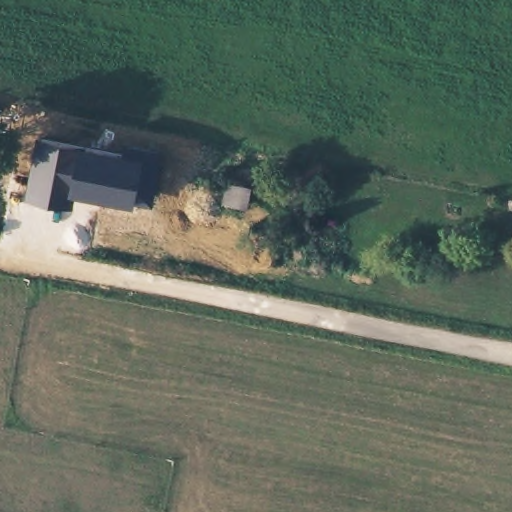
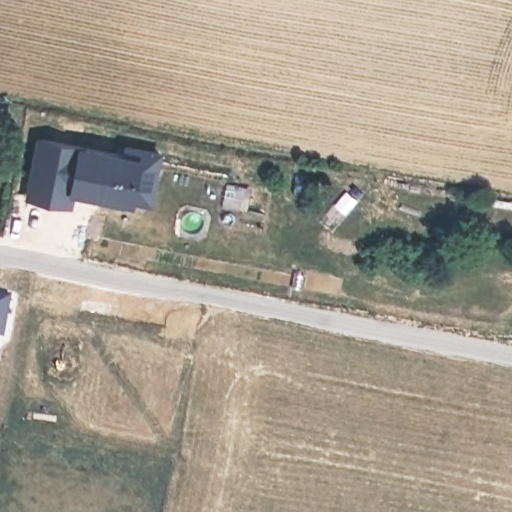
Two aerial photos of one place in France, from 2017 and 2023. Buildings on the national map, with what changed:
unchanged [(152,204),(135,200),(135,204),(75,193),(72,207),(25,199),(38,134),(122,150),(125,139),(162,148),(152,204)]
unchanged [(241,184),(240,207),(222,203),(226,181),(241,184)]
new [(3,334),(0,334),(0,295),(10,296),(3,334)]

